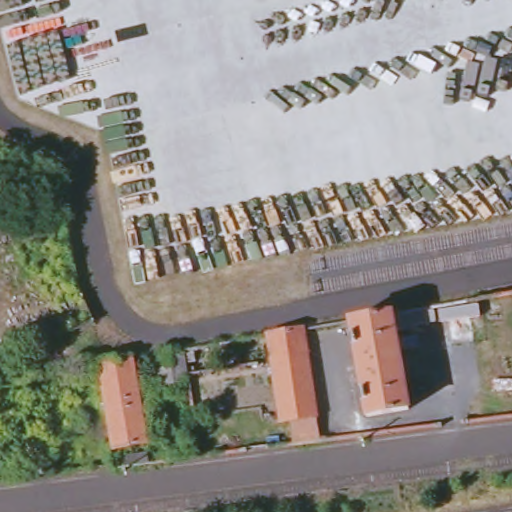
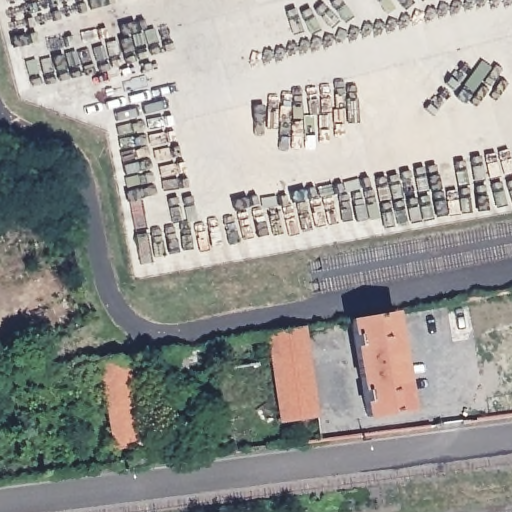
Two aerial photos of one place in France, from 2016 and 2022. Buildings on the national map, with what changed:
unchanged [(396,312),(412,411),(365,417),(349,320),(396,312)]
unchanged [(300,327),(316,422),(290,425),(287,406),(277,407),(265,333),(300,327)]
unchanged [(169,352),(174,380),(154,382),(149,356),(169,352)]
unchanged [(135,356),(149,442),(111,449),(97,361),(135,356)]

